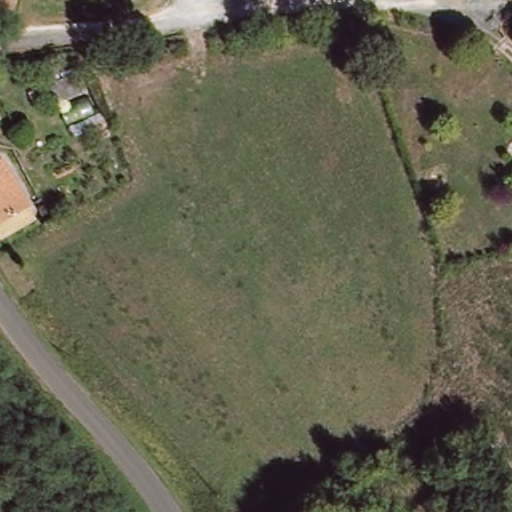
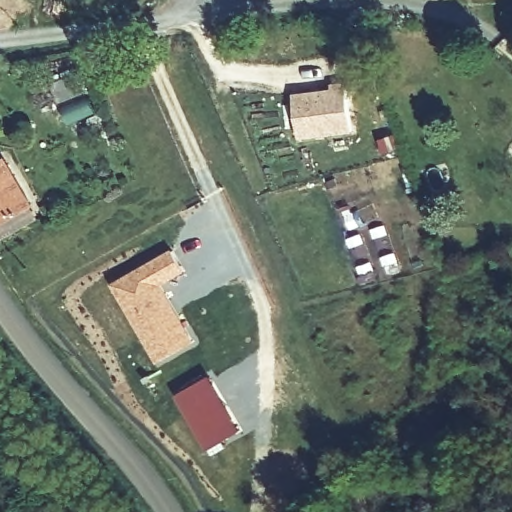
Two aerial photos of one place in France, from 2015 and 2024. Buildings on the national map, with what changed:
unchanged [(22,1),(13,36),(0,32),(0,3),(4,4),(5,0),(17,0),(22,1)]
new [(300,140),(295,94),(333,88),(333,84),(346,82),(352,132),(300,140)]
unchanged [(14,178),(29,210),(10,218),(0,224),(0,185),(14,178)]
new [(171,248),(185,273),(163,285),(195,344),(158,364),(111,282),(171,248)]
new [(207,374),(240,433),(209,451),(175,393),(207,374)]

